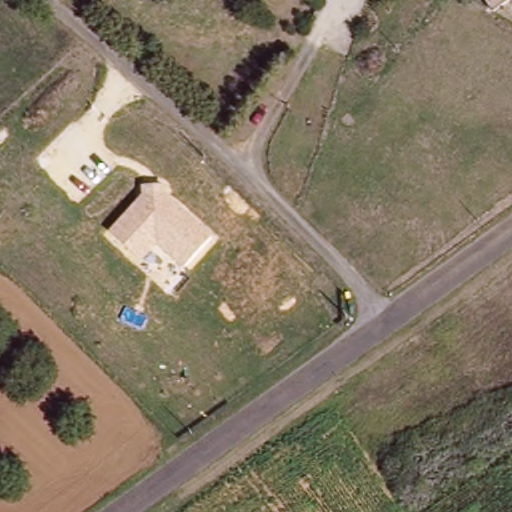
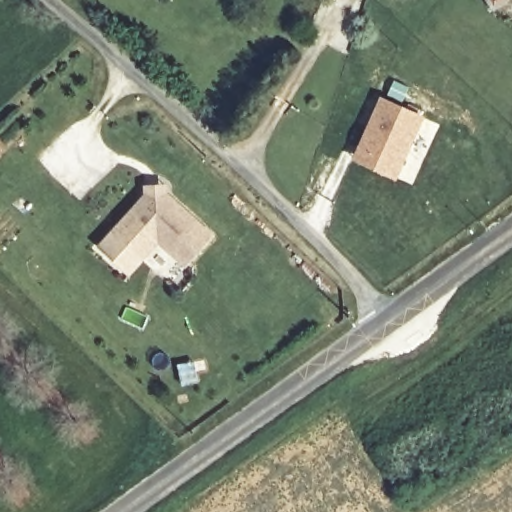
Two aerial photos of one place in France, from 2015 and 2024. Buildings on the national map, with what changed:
unchanged [(486,0),(498,0),(490,5),(486,0)]
new [(383,99),(423,119),(395,178),(362,162),(355,159),(365,139),(383,99)]
unchanged [(167,194),(213,237),(185,269),(158,245),(126,279),(90,242),(142,197),(142,187),(168,184),(167,194)]

